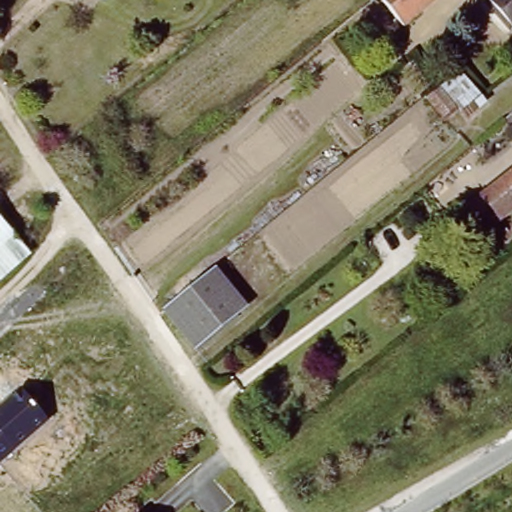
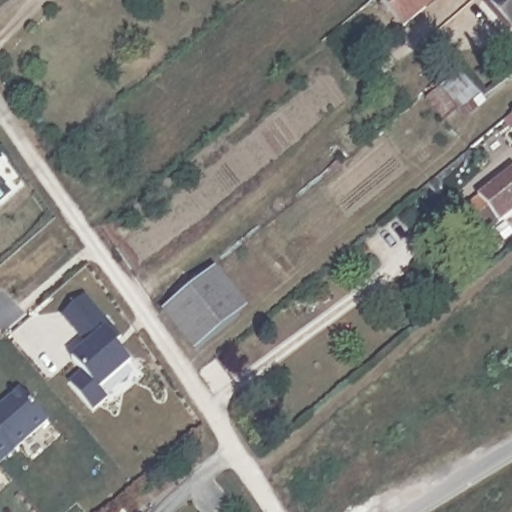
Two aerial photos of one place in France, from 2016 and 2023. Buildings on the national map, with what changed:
unchanged [(405,31),(378,0),(442,0),(405,31)]
unchanged [(485,1),(486,0),(512,0),(512,32),(485,1)]
unchanged [(450,119),(427,90),(447,74),(472,104),(452,121),(450,119)]
unchanged [(502,135),(494,125),(512,111),(512,127),(502,135)]
unchanged [(460,218),(477,205),(493,191),(512,178),(512,179),(512,215),(495,228),(478,241),(460,218)]
demolished [(0,280),(0,219),(30,254),(0,280)]
unchanged [(212,271),(245,312),(203,347),(170,306),(212,271)]
new [(113,340),(131,362),(100,389),(107,400),(94,411),(68,381),(82,370),(72,356),(86,344),(62,315),(85,295),(120,334),(113,340)]
unchanged [(0,408),(20,390),(48,422),(0,464),(0,408)]

